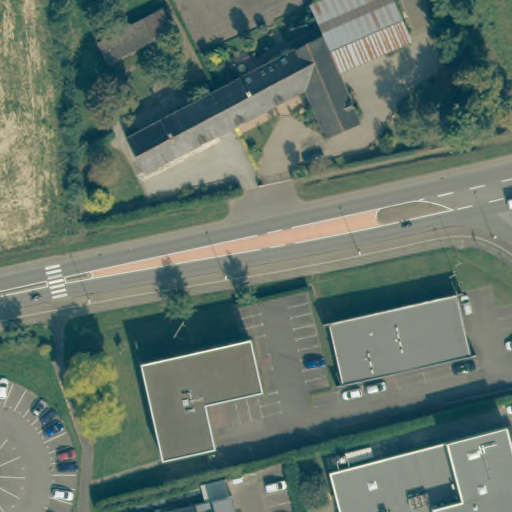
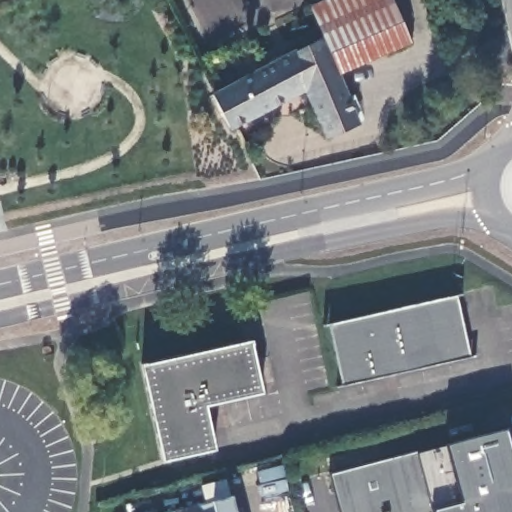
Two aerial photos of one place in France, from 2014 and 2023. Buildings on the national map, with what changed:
unchanged [(314,0),(388,0),(405,39),(335,67),(320,35),(306,3),(314,0)]
unchanged [(320,35),(335,67),(360,116),(326,133),(302,85),(233,122),(216,89),(320,35)]
demolished [(216,89),(233,122),(150,166),(144,168),(127,136),(137,131),(216,89)]
unchanged [(457,288),(472,355),(344,383),(329,318),(457,288)]
unchanged [(250,338),(261,389),(206,401),(215,444),(164,455),(142,360),(250,338)]
unchanged [(512,446),(512,512),(340,512),(330,472),(507,427),(512,446)]
unchanged [(213,499),(216,512),(161,512),(213,499)]

